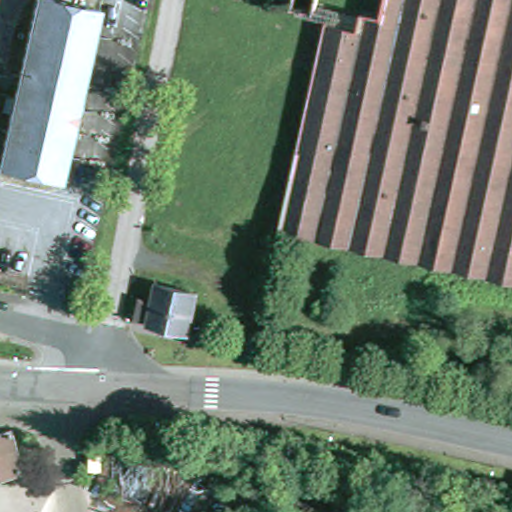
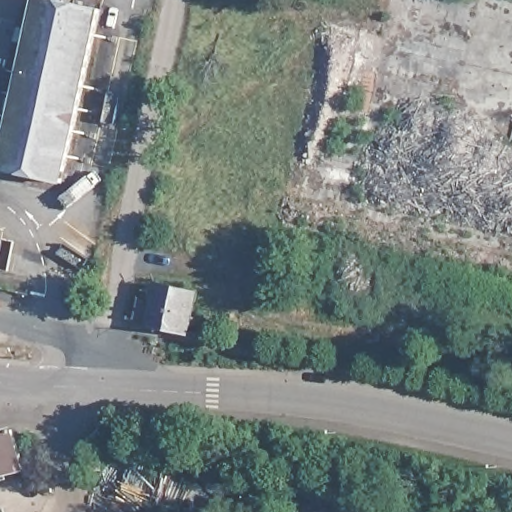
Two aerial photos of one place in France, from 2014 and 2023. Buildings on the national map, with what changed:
demolished [(287,235),(329,31),(362,38),(364,24),(365,20),(386,25),(391,0),(512,0),(512,287),(287,235)]
unchanged [(105,16),(69,187),(4,172),(41,1),(105,16)]
unchanged [(143,301),(158,304),(162,289),(200,298),(191,337),(154,328),(138,324),(143,301)]
unchanged [(20,470),(0,476),(0,434),(9,432),(20,470)]

